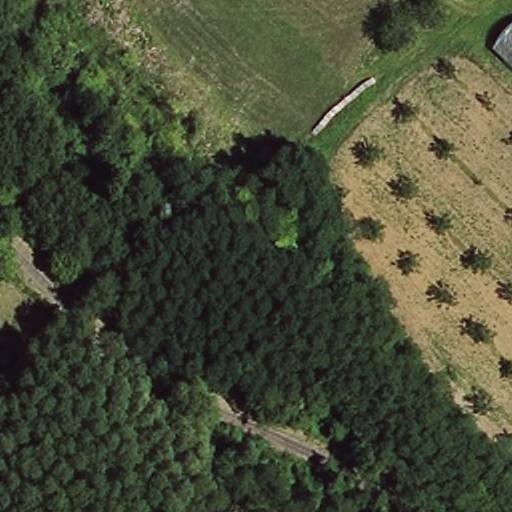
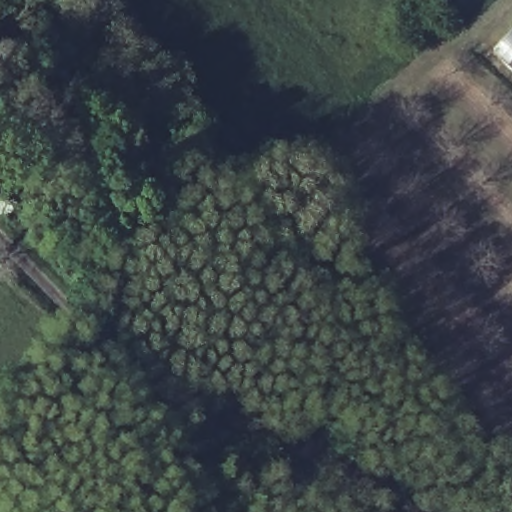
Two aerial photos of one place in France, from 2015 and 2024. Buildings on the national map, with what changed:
unchanged [(512,27),(512,75),(488,52),(512,27)]

